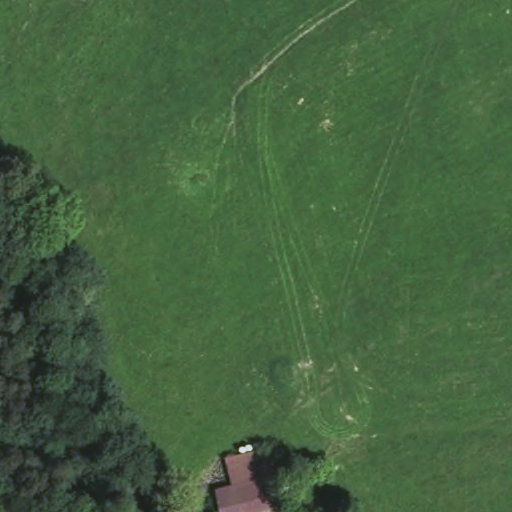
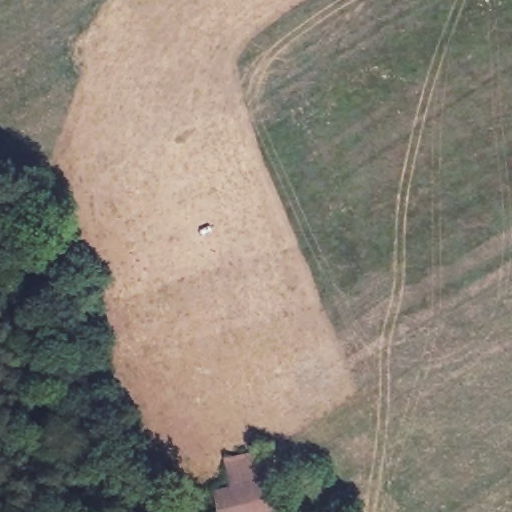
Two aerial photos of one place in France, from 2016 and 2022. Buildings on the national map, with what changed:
unchanged [(282,512),(209,512),(205,497),(224,493),(217,463),(267,451),(279,501),(282,512)]

